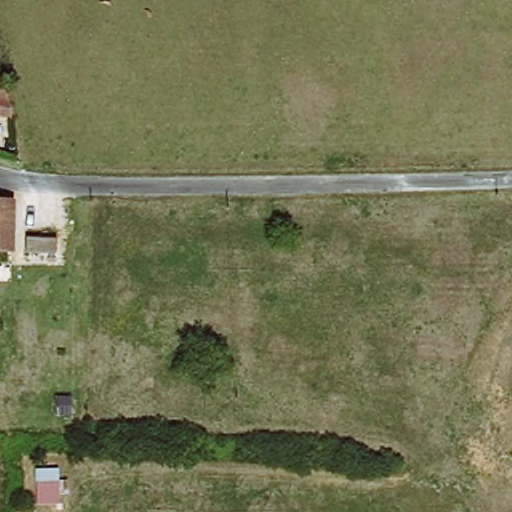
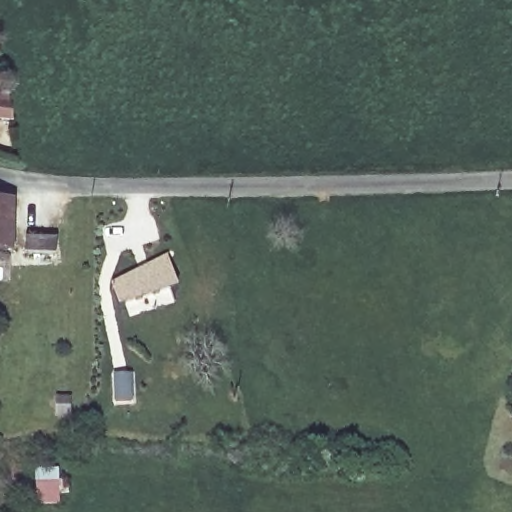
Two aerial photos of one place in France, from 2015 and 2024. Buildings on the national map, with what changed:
unchanged [(0,190),(10,191),(8,259),(8,273),(0,272),(0,190)]
new [(168,260),(178,288),(118,308),(109,280),(168,260)]

